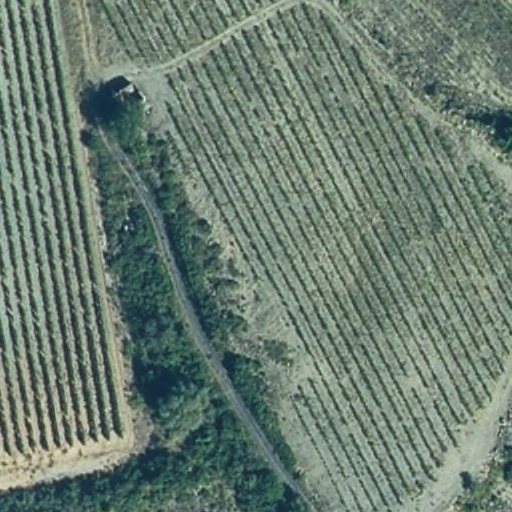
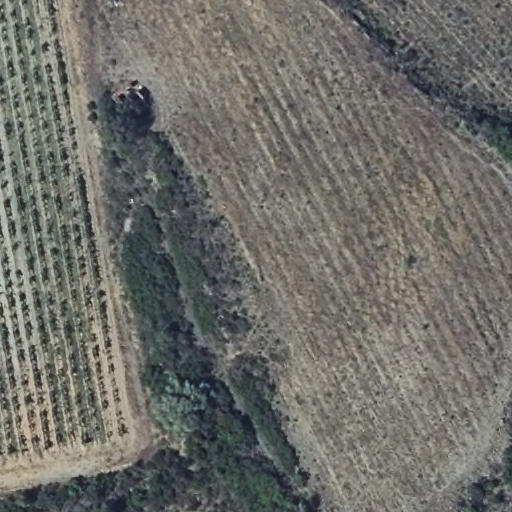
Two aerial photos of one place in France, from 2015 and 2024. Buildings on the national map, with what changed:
unchanged [(137,98),(118,108),(106,92),(127,81),(137,98)]

